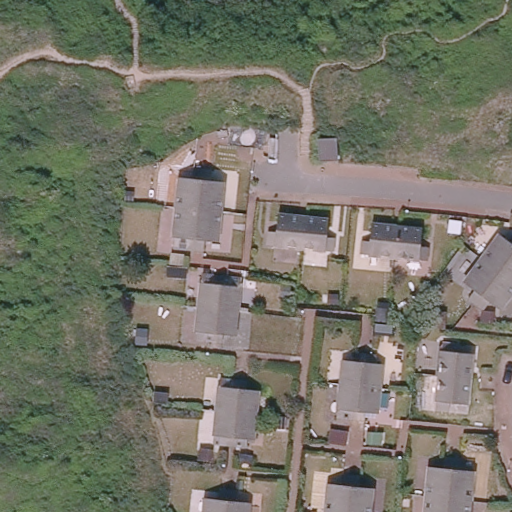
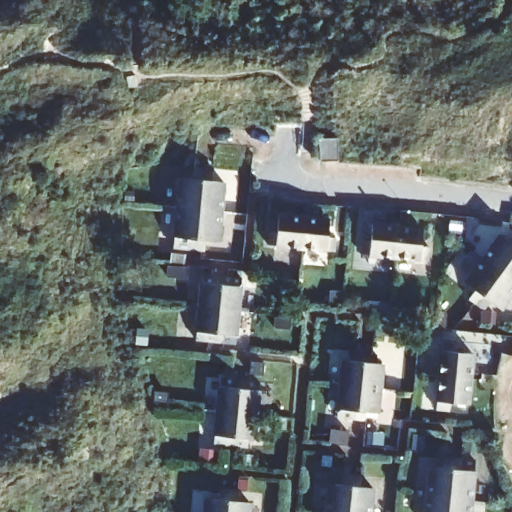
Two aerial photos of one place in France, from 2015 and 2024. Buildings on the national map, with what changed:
unchanged [(337,134),(339,155),(320,155),(319,135),(337,134)]
unchanged [(224,181),(218,242),(205,241),(205,251),(187,250),(187,240),(173,238),(180,178),(193,179),(195,169),(212,171),(212,180),(224,181)]
unchanged [(330,220),(328,236),(337,237),(335,251),(267,245),(268,231),(277,232),(279,215),(330,220)]
unchanged [(427,219),(442,220),(440,230),(426,229),(427,219)]
unchanged [(419,229),(417,246),(425,247),(423,260),(357,254),(357,241),(365,242),(367,224),(419,229)]
unchanged [(511,238),(512,237),(512,289),(500,305),(490,298),(483,306),(468,294),(475,286),(465,278),(500,230),(511,238)]
unchanged [(197,333),(202,283),(213,284),(215,276),(230,277),(229,286),(240,287),(237,336),(225,335),(223,344),(208,342),(209,334),(197,333)]
unchanged [(451,340),(450,347),(467,349),(462,400),(445,399),(445,406),(432,405),(440,339),(451,340)]
unchanged [(344,361),(355,362),(357,354),(371,355),(370,364),(384,365),(379,415),(366,413),(365,422),(350,420),(352,411),(340,410),(344,361)]
unchanged [(215,437),(220,378),(248,381),(247,389),(258,390),(253,440),(243,439),(242,447),(225,446),(226,438),(215,437)]
unchanged [(445,458),(462,460),(462,470),(474,472),(470,512),(426,512),(430,467),(443,469),(445,458)]
unchanged [(348,476),(367,477),(366,488),(378,489),(376,512),(332,512),(335,484),(347,486),(348,476)]
unchanged [(219,500),(220,489),(238,491),(237,501),(250,502),(250,512),(204,512),(205,499),(219,500)]

